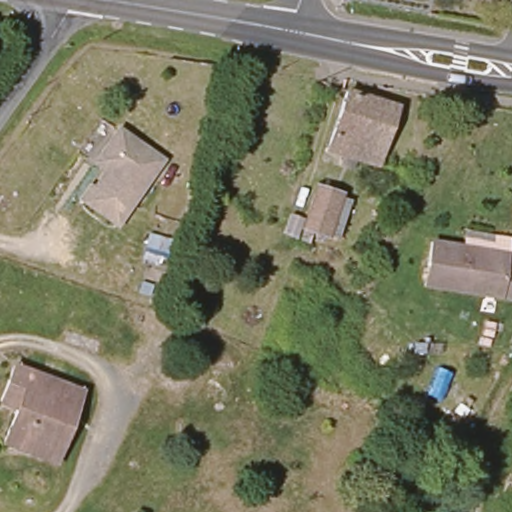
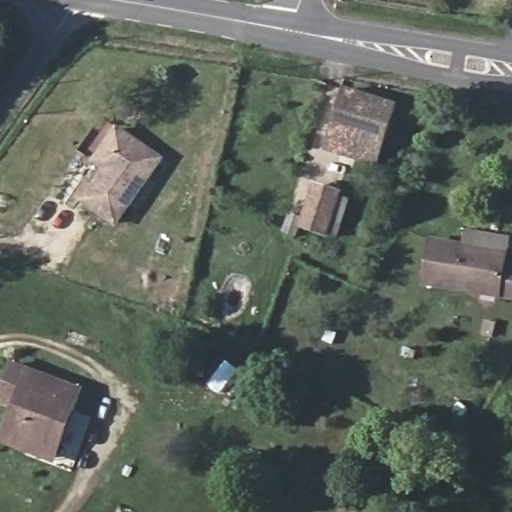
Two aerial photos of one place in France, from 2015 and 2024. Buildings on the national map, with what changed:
unchanged [(505,0),(512,0),(512,1),(505,0)]
unchanged [(332,153),(349,93),(399,109),(382,168),(332,153)]
unchanged [(94,186),(106,168),(95,160),(103,149),(118,129),(160,158),(116,222),(84,200),(80,196),(90,183),(94,186)]
unchanged [(314,228),(325,190),(347,196),(336,235),(314,228)]
unchanged [(434,286),(438,244),(512,254),(511,266),(512,266),(512,297),(434,286)]
unchanged [(34,452),(9,444),(20,413),(0,408),(4,397),(14,367),(89,393),(81,413),(64,463),(34,452)]

